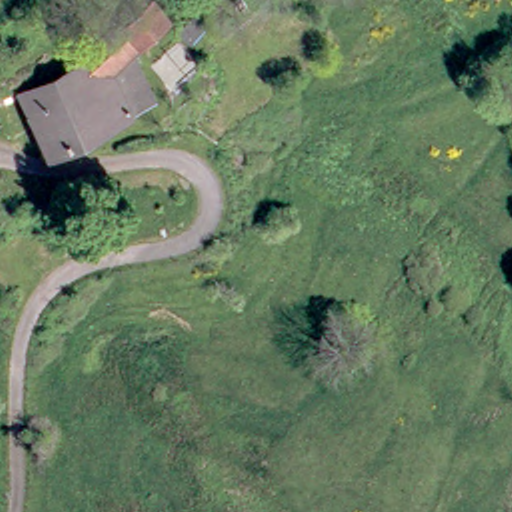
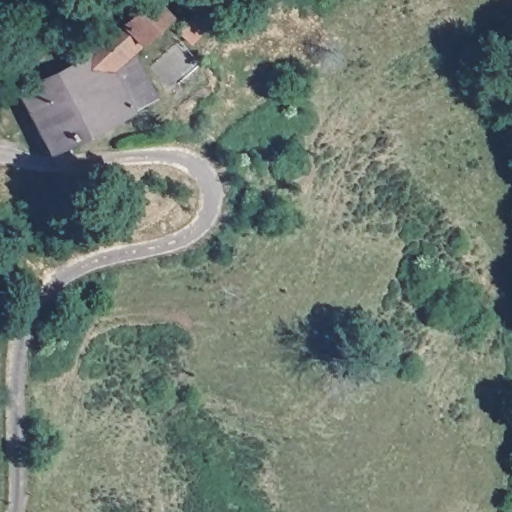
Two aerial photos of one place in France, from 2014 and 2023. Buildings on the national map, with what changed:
unchanged [(130,48),(103,68),(92,52),(87,40),(111,27),(134,10),(145,0),(153,0),(167,15),(130,48)]
unchanged [(103,68),(130,48),(140,71),(141,74),(152,96),(47,149),(17,88),(92,52),(103,68)]

